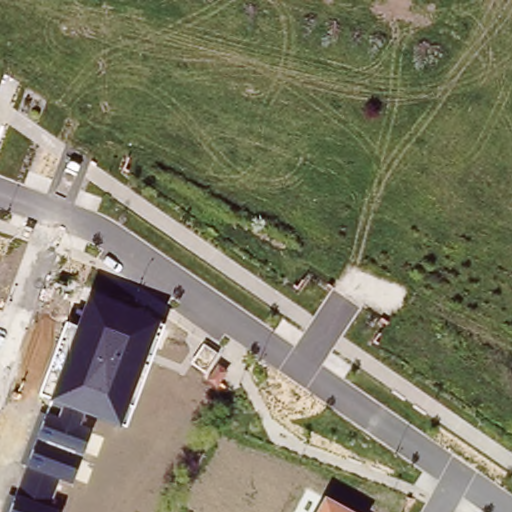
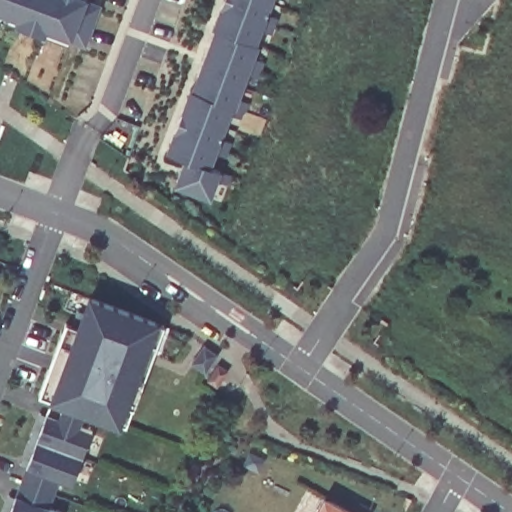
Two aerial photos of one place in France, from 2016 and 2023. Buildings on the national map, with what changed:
new [(86,46),(69,42),(43,32),(0,17),(0,0),(86,0),(85,1),(100,6),(86,46)]
new [(258,44),(235,107),(230,105),(209,165),(222,171),(210,198),(174,185),(185,158),(165,151),(189,88),(192,89),(215,27),(212,26),(222,0),(271,0),(254,42),(258,44)]
unchanged [(6,493),(15,496),(51,402),(39,395),(66,322),(76,326),(87,295),(159,320),(158,323),(165,325),(126,428),(83,415),(80,425),(91,430),(72,485),(57,480),(48,506),(61,511),(61,512),(0,512),(0,511),(6,493)]
new [(220,365),(227,370),(217,387),(210,382),(220,365)]
unchanged [(324,496),(352,512),(315,512),(324,496)]

